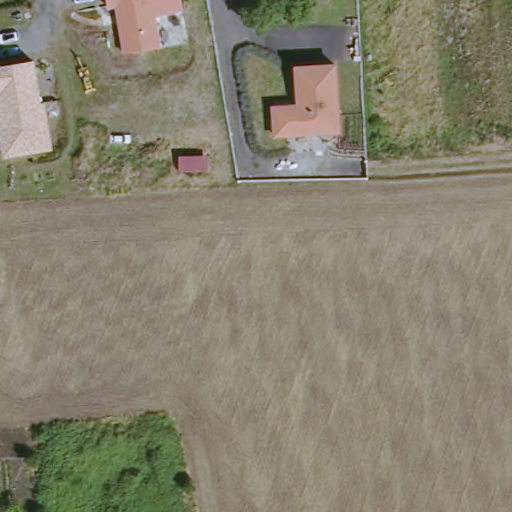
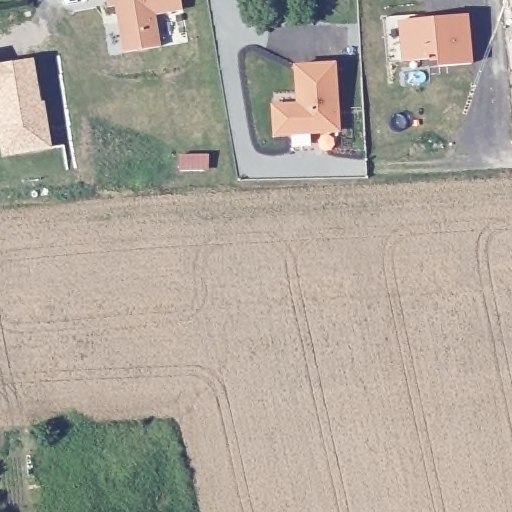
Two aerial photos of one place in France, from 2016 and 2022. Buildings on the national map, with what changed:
unchanged [(128,59),(122,59),(115,14),(105,14),(104,0),(179,0),(187,50),(128,59)]
new [(400,23),(469,16),(474,64),(440,67),(439,59),(403,63),(400,23)]
new [(394,18),(408,17),(409,22),(394,23),(394,18)]
unchanged [(279,129),(279,101),(304,100),(302,62),(340,61),(342,128),(279,129)]
unchanged [(35,62),(43,105),(47,106),(54,152),(5,160),(0,136),(0,68),(35,62)]

